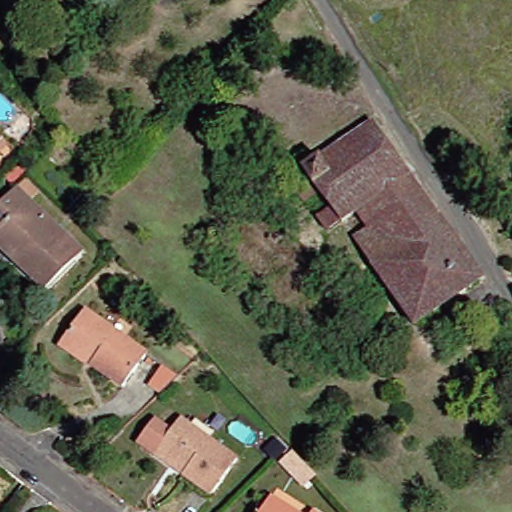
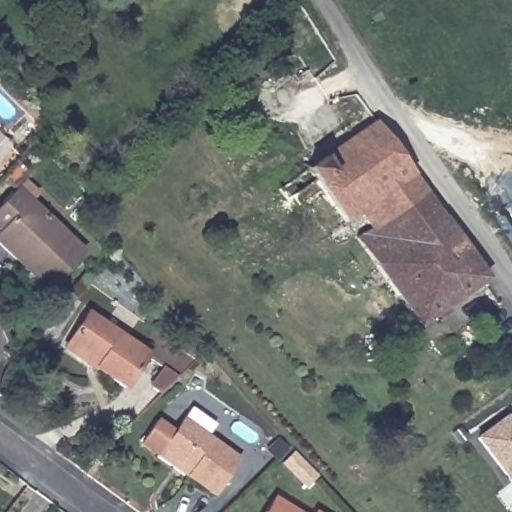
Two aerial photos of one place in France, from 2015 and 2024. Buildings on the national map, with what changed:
unchanged [(428,186),(491,273),(425,320),(361,233),(376,223),(363,208),(350,218),(334,229),(303,186),(289,195),(281,185),(310,164),(378,116),(417,169),(428,186)]
unchanged [(10,142),(0,151),(0,133),(10,142)]
unchanged [(16,189),(16,188),(22,181),(36,193),(28,201),(58,229),(82,251),(76,257),(44,291),(20,269),(0,249),(0,206),(16,189)]
unchanged [(61,349),(82,318),(142,359),(119,395),(90,374),(89,376),(57,354),(61,349)]
unchanged [(152,421),(169,432),(177,419),(235,460),(208,497),(179,477),(134,445),(137,440),(152,421)]
new [(512,430),(512,493),(474,441),(504,419),(512,430)]
unchanged [(314,482),(307,475),(303,479),(288,462),(300,451),(315,468),(322,475),(314,482)]
unchanged [(273,498),(294,512),(264,512),(273,498)]

